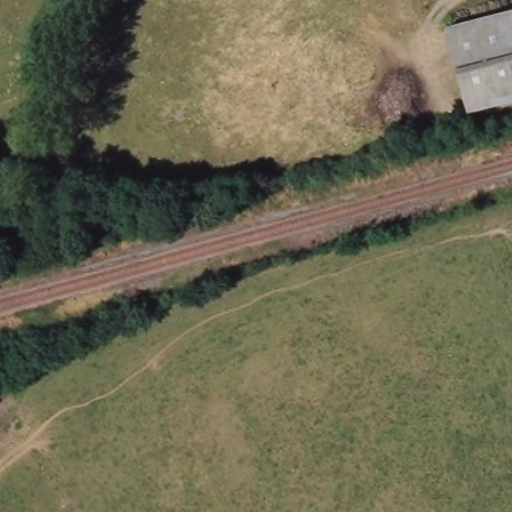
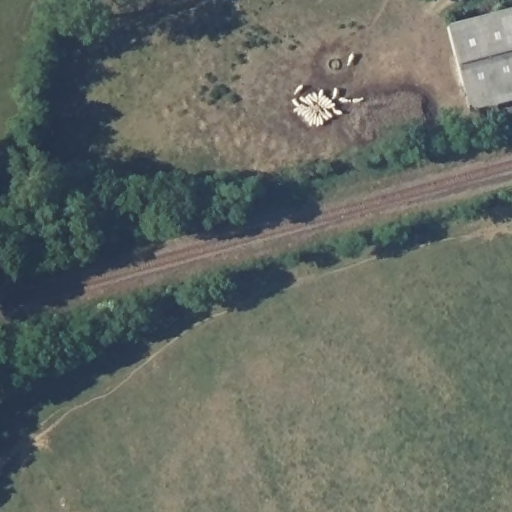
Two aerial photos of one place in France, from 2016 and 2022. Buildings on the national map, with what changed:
unchanged [(466,105),(447,37),(512,18),(512,92),(466,105)]

